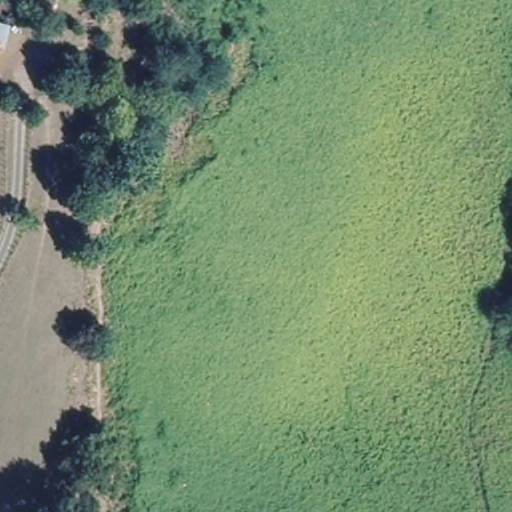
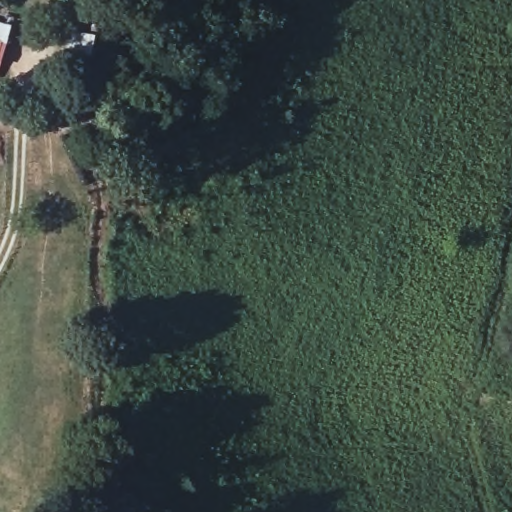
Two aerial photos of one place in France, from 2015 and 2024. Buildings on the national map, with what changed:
unchanged [(0,66),(0,38),(6,40),(0,66)]

